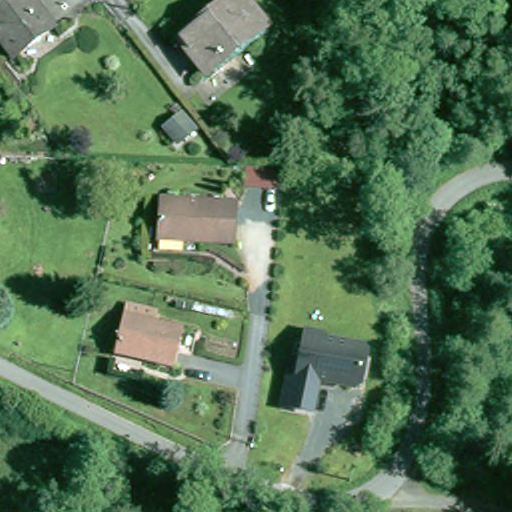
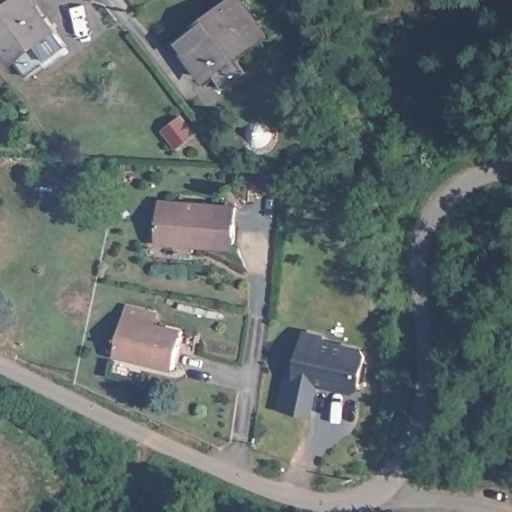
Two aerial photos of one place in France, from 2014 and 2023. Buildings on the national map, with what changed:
unchanged [(15,61),(0,42),(0,13),(17,0),(30,0),(54,31),(15,61)]
unchanged [(266,31),(206,77),(179,42),(235,0),(241,0),(266,31)]
unchanged [(197,135),(181,147),(168,131),(183,119),(197,135)]
unchanged [(160,241),(163,201),(237,206),(234,246),(160,241)]
unchanged [(121,354),(131,317),(188,331),(178,368),(121,354)]
unchanged [(323,332),(326,338),(362,345),(365,352),(360,380),(353,384),(318,377),(311,408),(282,402),(291,361),(300,363),(307,329),(323,332)]

